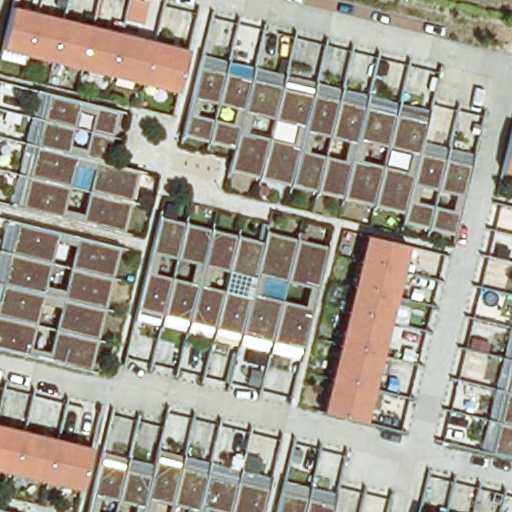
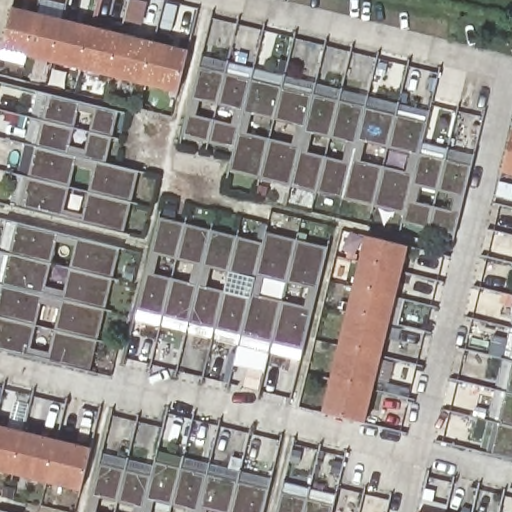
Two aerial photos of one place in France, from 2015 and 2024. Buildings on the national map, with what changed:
unchanged [(177,95),(1,51),(12,8),(187,50),(177,95)]
unchanged [(427,124),(419,154),(471,168),(452,237),(399,224),(401,215),(227,173),(233,151),(181,139),(200,65),(427,124)]
unchanged [(39,94),(116,111),(104,164),(137,171),(123,234),(14,207),(39,94)]
unchanged [(500,173),(509,130),(512,131),(512,176),(500,173)]
unchanged [(135,311),(157,219),(260,242),(262,230),(328,245),(304,347),(135,311)]
unchanged [(122,248),(90,371),(0,349),(0,260),(9,224),(122,248)]
unchanged [(366,423),(322,413),(362,238),(408,250),(366,423)]
unchanged [(489,456),(512,362),(512,461),(489,456)]
unchanged [(0,476),(0,426),(92,447),(78,495),(0,476)]
unchanged [(85,512),(96,462),(151,475),(156,460),(271,489),(264,512),(85,512)]
unchanged [(332,504),(330,512),(277,512),(282,495),(332,504)]
unchanged [(423,512),(417,512),(417,510),(423,512)]

